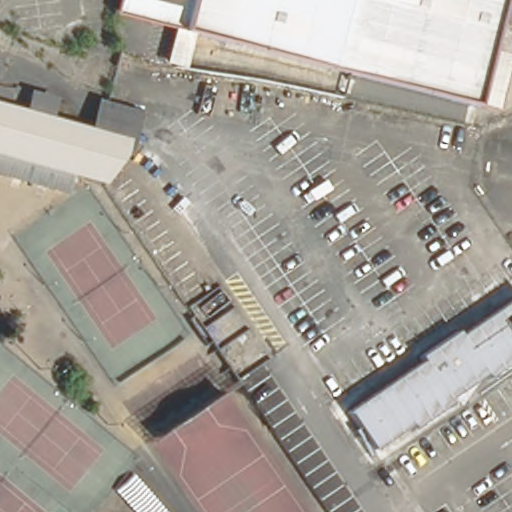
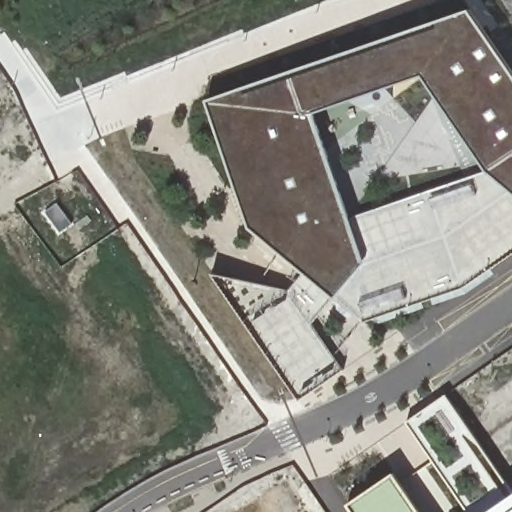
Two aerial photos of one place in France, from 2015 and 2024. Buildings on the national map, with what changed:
demolished [(186,19),(192,0),(503,0),(495,27),(479,88),(476,98),(436,87),(186,19)]
new [(512,254),(463,288),(363,322),(334,298),(312,323),(343,369),(300,400),(212,273),(288,289),(303,271),(250,226),(206,99),(469,7),(512,69),(512,254)]
demolished [(97,124),(130,147),(109,178),(0,148),(0,97),(27,105),(32,106),(46,110),(93,123),(97,124)]
demolished [(36,159),(32,175),(0,167),(0,150),(36,159)]
demolished [(418,357),(455,331),(458,335),(512,299),(512,362),(488,379),(484,375),(447,400),(449,403),(412,429),(409,425),(372,450),(346,412),(420,361),(418,357)]
new [(447,394),(512,491),(512,512),(469,512),(407,419),(447,394)]
new [(353,512),(346,502),(393,471),(421,512),(353,512)]

